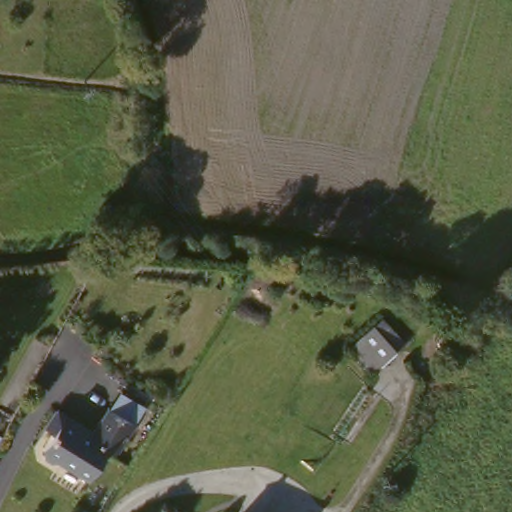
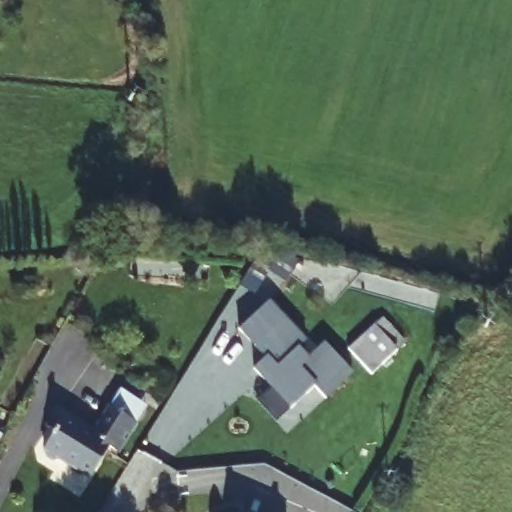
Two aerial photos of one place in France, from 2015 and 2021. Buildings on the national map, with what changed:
new [(270,302),(306,339),(299,346),(311,358),(325,344),(353,374),(328,399),(314,386),(291,408),(254,368),(264,358),(239,329),(270,302)]
unchanged [(381,320),(403,344),(372,374),(349,349),(381,320)]
unchanged [(93,431),(111,402),(139,419),(119,451),(111,447),(94,474),(60,454),(57,458),(42,449),(54,428),(46,423),(56,408),(93,431)]

